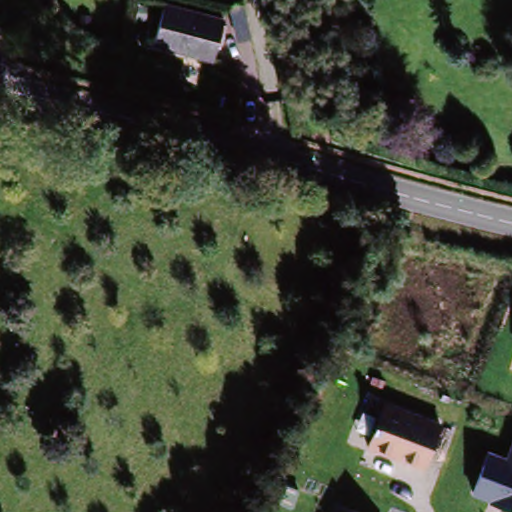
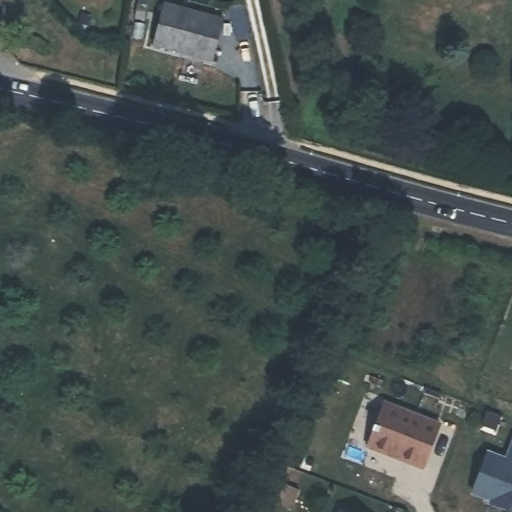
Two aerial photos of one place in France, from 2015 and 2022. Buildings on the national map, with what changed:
unchanged [(166,0),(177,0),(226,12),(217,52),(156,37),(166,0)]
unchanged [(117,82),(118,76),(120,64),(144,71),(142,89),(117,82)]
unchanged [(440,424),(423,470),(365,447),(384,401),(440,424)]
unchanged [(490,502),(471,496),(488,451),(505,458),(512,440),(512,512),(508,512),(489,505),(490,502)]
unchanged [(348,512),(339,512),(340,509),(348,512)]

